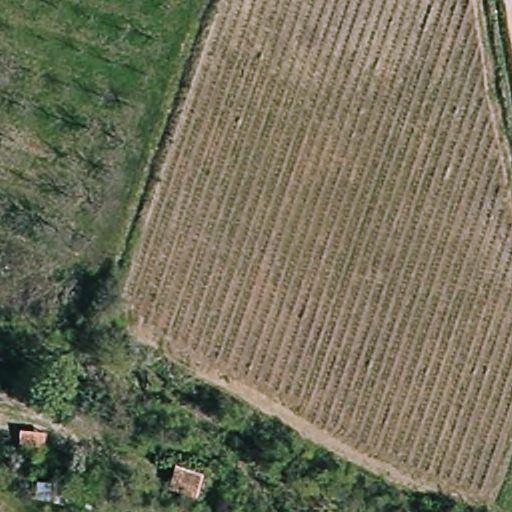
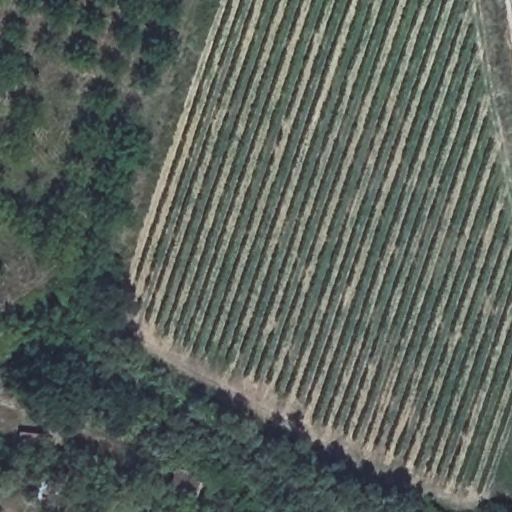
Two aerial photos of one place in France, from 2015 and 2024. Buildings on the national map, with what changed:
unchanged [(45,451),(20,449),(20,432),(46,434),(45,451)]
unchanged [(167,491),(175,466),(203,476),(195,500),(167,491)]
unchanged [(35,482),(83,495),(80,512),(59,512),(60,509),(32,500),(35,482)]

